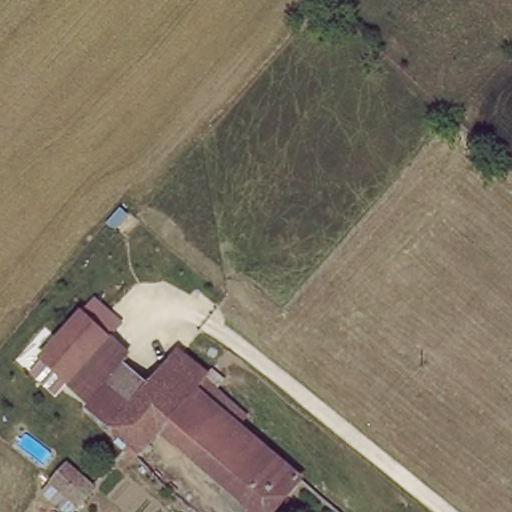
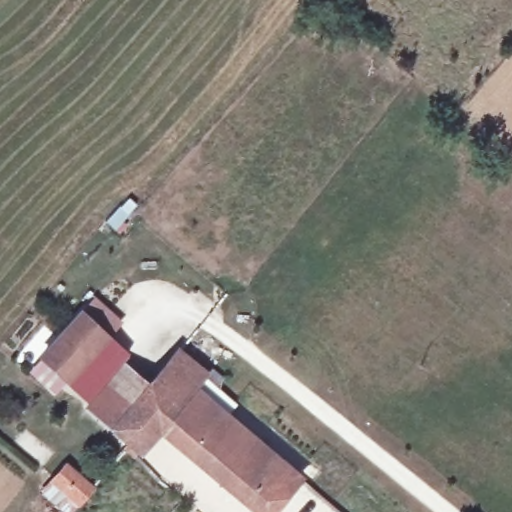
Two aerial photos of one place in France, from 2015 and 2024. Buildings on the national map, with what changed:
unchanged [(83,406),(32,360),(74,317),(117,355),(108,363),(114,368),(141,390),(107,428),(83,406)]
unchanged [(175,451),(152,431),(133,451),(107,428),(141,390),(171,355),(197,377),(185,390),(210,410),(175,451)]
unchanged [(175,451),(210,410),(253,446),(235,466),(216,486),(175,451)]
unchanged [(253,446),(293,481),(277,502),(268,512),(247,512),(216,486),(235,466),(253,446)]
unchanged [(69,465),(93,488),(72,512),(65,512),(44,493),(69,465)]

